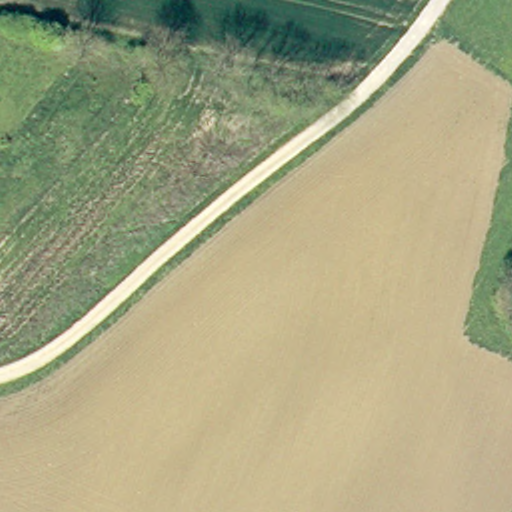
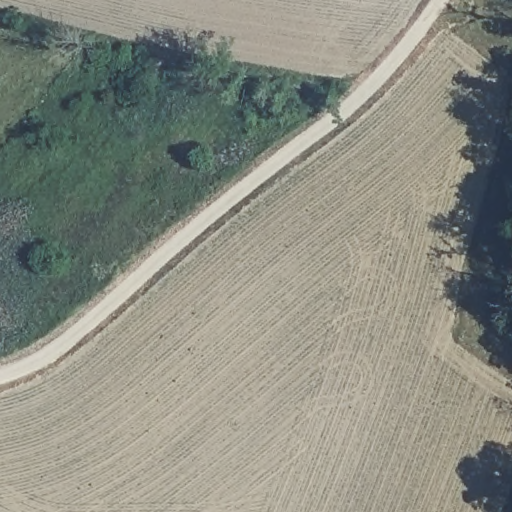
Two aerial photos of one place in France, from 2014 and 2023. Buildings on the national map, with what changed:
[]

